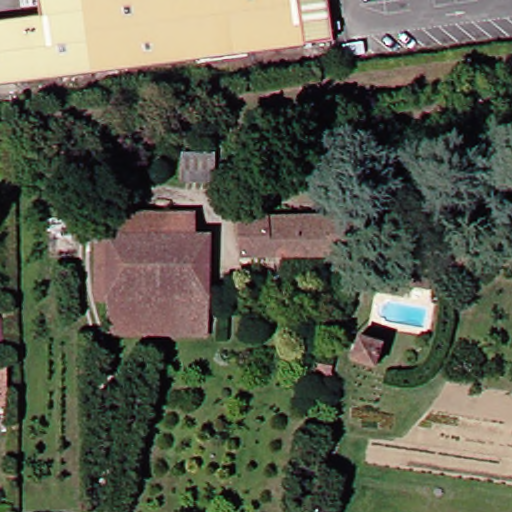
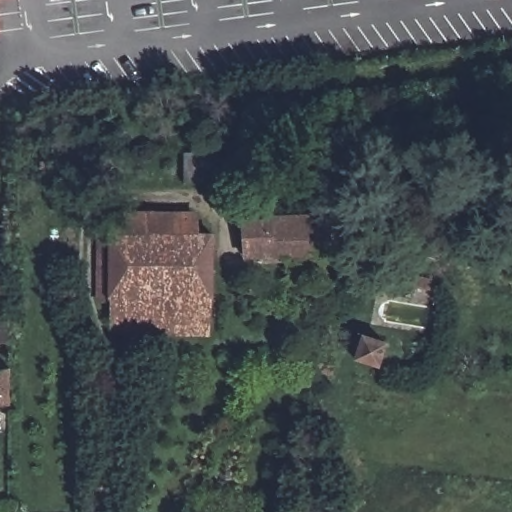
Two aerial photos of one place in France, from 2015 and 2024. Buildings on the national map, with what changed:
demolished [(45,0),(338,0),(343,39),(0,84),(0,83),(0,22),(47,15),(45,0)]
unchanged [(183,184),(182,155),(215,155),(215,182),(183,184)]
unchanged [(166,336),(142,336),(127,332),(116,332),(117,272),(106,272),(106,235),(117,235),(117,214),(200,215),(200,236),(220,236),(218,325),(216,325),(216,337),(166,336)]
unchanged [(360,254),(242,257),(241,220),(359,219),(360,254)]
unchanged [(431,282),(428,293),(413,290),(415,280),(431,282)]
unchanged [(352,361),(359,336),(382,343),(375,367),(352,361)]
unchanged [(7,369),(7,395),(0,396),(0,371),(7,369)]

